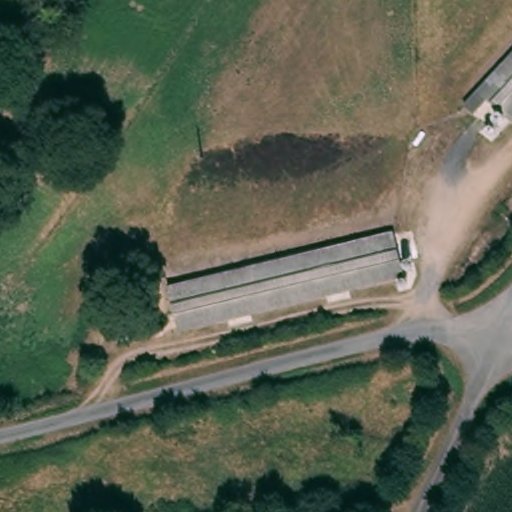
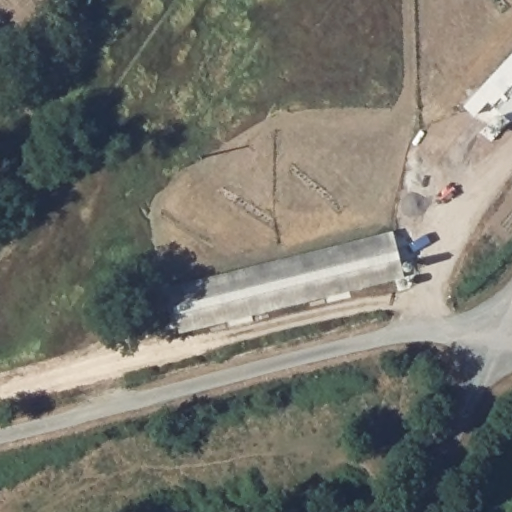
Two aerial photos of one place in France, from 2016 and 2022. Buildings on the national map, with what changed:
unchanged [(477,95),(464,110),(454,101),(512,40),(512,104),(500,116),(477,95)]
unchanged [(179,322),(168,278),(393,223),(404,266),(179,322)]

